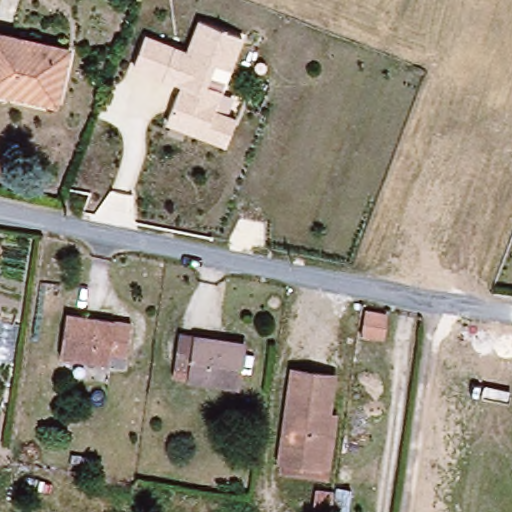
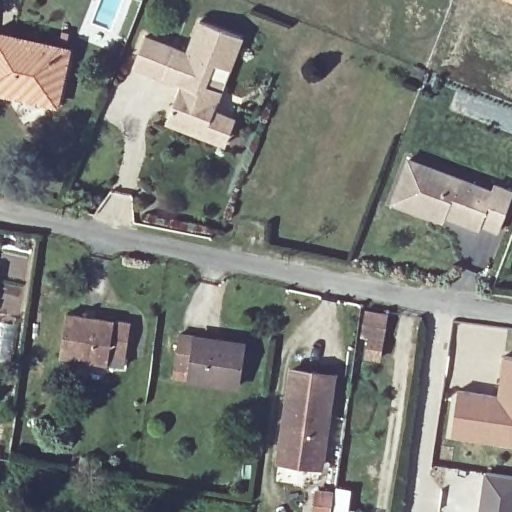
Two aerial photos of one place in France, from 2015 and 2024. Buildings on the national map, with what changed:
unchanged [(244,36),(216,108),(235,117),(224,145),(162,122),(176,85),(131,68),(145,32),(186,49),(196,20),(244,36)]
unchanged [(0,92),(0,39),(71,53),(58,104),(0,92)]
new [(492,190),(495,185),(512,192),(512,203),(501,231),(481,223),(480,228),(446,216),(445,221),(390,201),(405,159),(492,190)]
unchanged [(362,307),(387,311),(385,340),(358,336),(362,307)]
unchanged [(131,352),(116,352),(114,367),(65,358),(71,314),(134,323),(131,352)]
unchanged [(242,391),(191,383),(191,368),(175,366),(181,334),(245,344),(242,391)]
new [(498,395),(502,355),(512,357),(512,445),(450,435),(456,389),(498,395)]
unchanged [(326,474),(281,466),(281,456),(293,369),(333,374),(321,462),(329,464),(326,474)]
new [(477,512),(482,471),(512,475),(512,512),(477,512)]
unchanged [(324,512),(326,494),(343,497),(342,512),(324,512)]

